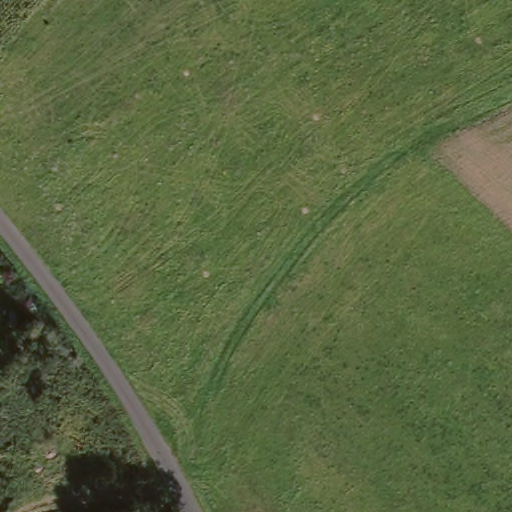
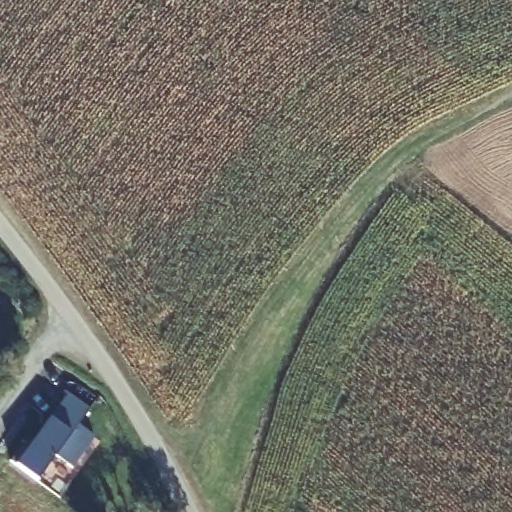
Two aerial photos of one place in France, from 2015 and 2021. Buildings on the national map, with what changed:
new [(90,409),(79,425),(95,437),(72,466),(57,456),(38,481),(17,465),(12,461),(26,441),(31,446),(50,419),(68,394),(90,409)]

